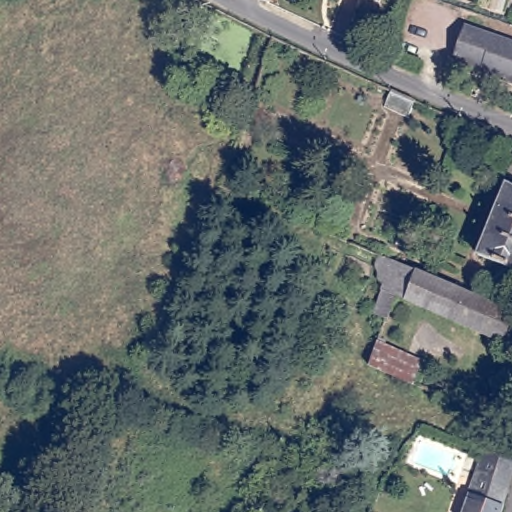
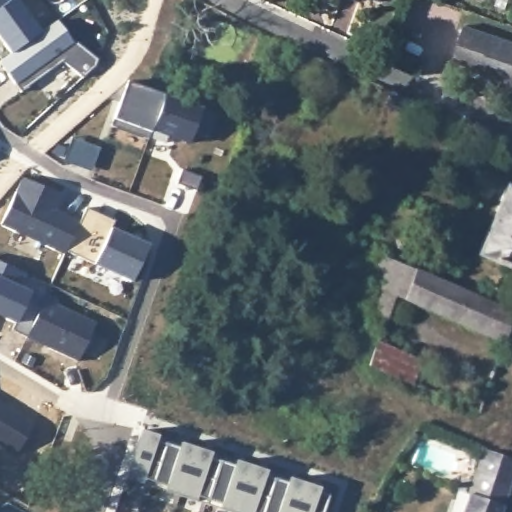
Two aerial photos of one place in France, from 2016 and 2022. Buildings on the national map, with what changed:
unchanged [(386,11),(365,4),(353,0),(389,0),(386,11)]
new [(0,63),(0,59),(55,18),(70,39),(73,38),(96,57),(94,64),(81,76),(61,60),(26,86),(20,90),(14,82),(0,63)]
unchanged [(466,25),(512,41),(512,83),(482,73),(483,70),(454,60),(466,25)]
new [(111,117),(123,82),(217,111),(209,138),(192,133),(189,144),(164,136),(162,141),(109,125),(111,117)]
unchanged [(510,178),(512,173),(512,179),(510,178)]
new [(21,175),(62,194),(55,208),(79,219),(65,249),(64,252),(0,223),(21,175)]
unchanged [(512,187),(512,265),(485,253),(512,187)]
new [(79,219),(85,205),(114,218),(111,226),(148,243),(131,279),(65,249),(79,219)]
unchanged [(512,303),(512,340),(508,338),(400,291),(392,313),(391,312),(378,307),(387,278),(382,273),(381,270),(381,264),(380,258),(381,253),(382,250),(385,247),(512,303)]
new [(16,285),(43,297),(26,335),(11,328),(15,320),(0,314),(0,261),(23,271),(16,285)]
new [(42,297),(94,322),(76,358),(26,335),(42,297)]
unchanged [(400,396),(406,382),(363,364),(373,339),(417,358),(407,383),(420,388),(414,402),(400,396)]
new [(328,490),(320,512),(228,512),(123,479),(139,431),(328,490)]
unchanged [(512,459),(512,472),(499,512),(462,512),(483,447),(512,459)]

